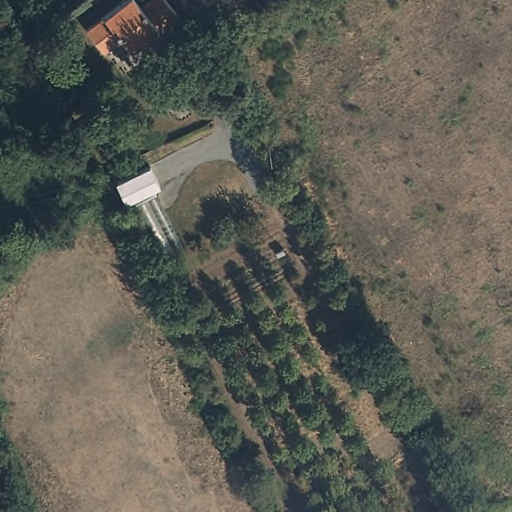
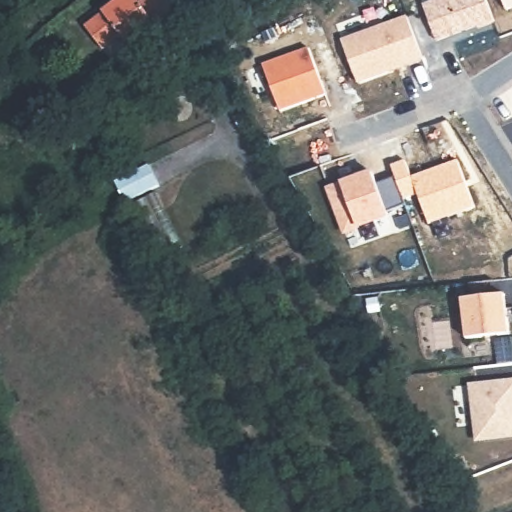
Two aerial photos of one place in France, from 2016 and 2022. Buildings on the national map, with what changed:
unchanged [(135,44),(126,32),(107,45),(90,23),(119,0),(146,0),(174,0),(180,7),(135,44)]
new [(487,0),(495,24),(478,31),(476,27),(436,43),(422,5),(436,0),(487,0)]
new [(501,0),(512,0),(512,10),(506,12),(501,0)]
new [(407,16),(423,60),(358,86),(341,41),(407,16)]
new [(308,49),(326,95),(280,112),(263,65),(308,49)]
new [(341,182),(371,171),(376,184),(394,178),(391,166),(406,161),(412,177),(456,161),(474,209),(429,227),(417,195),(403,201),(404,205),(386,211),(389,219),(359,231),(343,237),(326,189),(341,182)]
unchanged [(161,187),(125,204),(115,183),(149,167),(161,187)]
new [(461,298),(506,294),(511,336),(465,341),(461,298)]
new [(512,379),(512,439),(475,443),(469,384),(512,379)]

